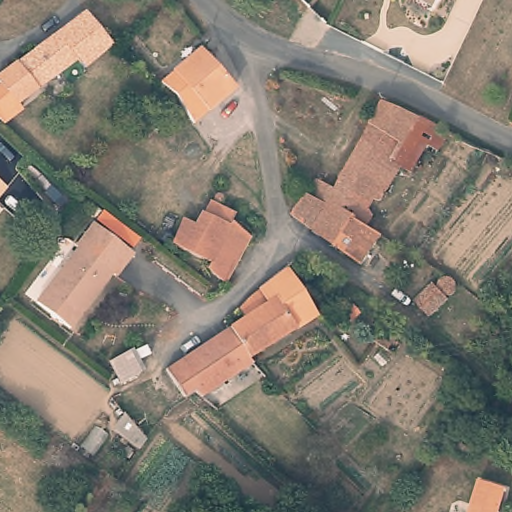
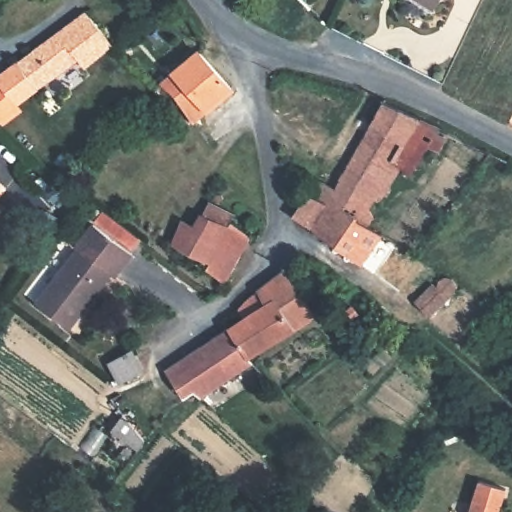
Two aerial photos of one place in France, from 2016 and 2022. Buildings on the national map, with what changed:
unchanged [(424,0),(440,0),(436,7),(424,0)]
unchanged [(88,10),(95,20),(114,41),(87,65),(79,56),(18,102),(0,79),(0,74),(8,69),(88,10)]
unchanged [(160,81),(169,74),(199,48),(232,87),(202,115),(194,121),(175,94),(144,137),(134,130),(164,85),(160,81)]
unchanged [(302,200),(314,177),(334,186),(381,99),(418,117),(393,162),(399,166),(381,200),(372,195),(366,206),(375,213),(368,225),(354,215),(334,245),(291,215),(302,200)]
unchanged [(446,130),(421,176),(399,166),(393,162),(418,117),(446,130)]
unchanged [(0,186),(0,184),(1,185),(0,186)]
unchanged [(249,235),(223,282),(204,272),(208,265),(178,251),(154,240),(162,217),(189,231),(202,209),(249,235)]
unchanged [(354,215),(368,225),(382,234),(360,263),(334,245),(354,215)]
unchanged [(78,245),(74,241),(89,220),(131,252),(115,271),(110,267),(109,268),(111,271),(71,327),(35,302),(78,245)]
unchanged [(235,305),(277,273),(278,275),(288,270),(295,282),(314,313),(245,356),(225,328),(244,316),(235,305)]
unchanged [(414,301),(434,281),(452,296),(432,315),(414,301)]
unchanged [(225,328),(245,356),(251,362),(221,381),(216,375),(198,345),(225,328)]
unchanged [(216,375),(221,381),(198,395),(191,390),(181,396),(161,367),(198,345),(216,375)]
unchanged [(148,438),(140,450),(114,430),(126,413),(148,438)]
unchanged [(481,480),(509,487),(502,512),(472,512),(481,480)]

